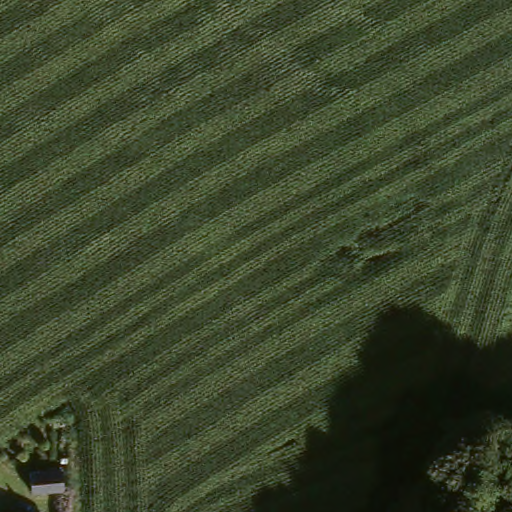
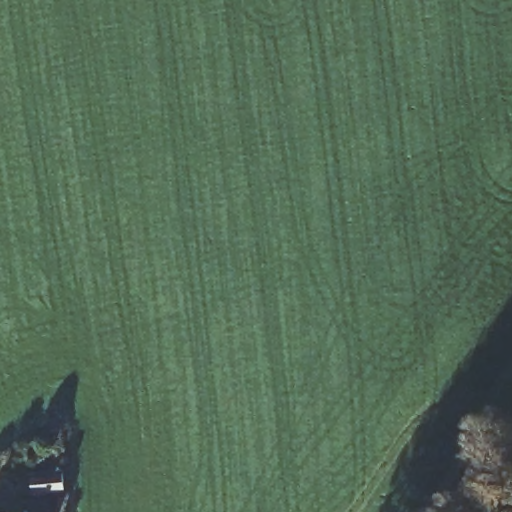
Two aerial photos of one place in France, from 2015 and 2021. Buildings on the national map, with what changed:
unchanged [(31,486),(32,471),(61,470),(61,487),(31,486)]

